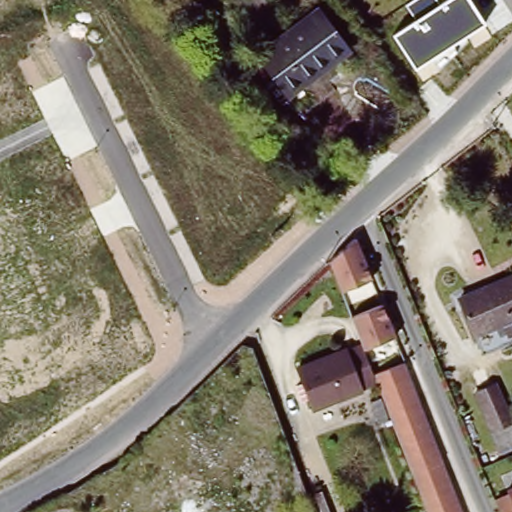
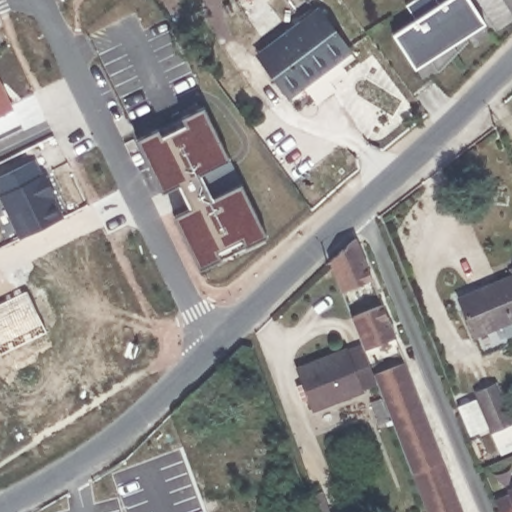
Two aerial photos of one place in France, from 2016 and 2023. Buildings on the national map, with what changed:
unchanged [(485,24),(465,37),(468,41),(456,54),(440,67),(433,57),(415,69),(393,35),(415,19),(406,5),(414,0),(438,0),(441,4),(446,0),(470,0),(485,24)]
unchanged [(300,15),(315,4),(351,54),(336,65),(300,15)]
unchanged [(271,36),(300,15),(336,65),(308,86),(271,36)]
unchanged [(289,100),(252,50),(271,36),(308,86),(289,100)]
new [(0,78),(15,110),(0,117),(0,78)]
new [(200,270),(174,217),(189,209),(177,186),(161,193),(135,139),(182,117),(203,107),(267,237),(200,270)]
new [(54,186),(57,192),(54,194),(64,215),(23,235),(2,192),(46,171),(54,186)]
unchanged [(330,260),(356,236),(372,278),(341,291),(330,260)]
unchanged [(508,314),(512,322),(500,327),(495,319),(469,332),(451,294),(510,267),(507,262),(512,260),(512,312),(508,314)]
unchanged [(351,315),(382,303),(395,337),(364,348),(351,315)]
unchanged [(328,352),(358,341),(362,351),(372,376),(374,380),(344,392),(328,352)]
unchanged [(310,405),(307,396),(301,398),(295,381),(300,379),(295,365),(328,352),(344,392),(310,405)]
unchanged [(373,373),(403,361),(462,512),(426,512),(411,473),(373,373)]
unchanged [(495,448),(472,392),(493,383),(512,430),(512,441),(495,448)]
unchanged [(509,495),(507,491),(512,488),(512,512),(500,512),(495,501),(509,495)]

